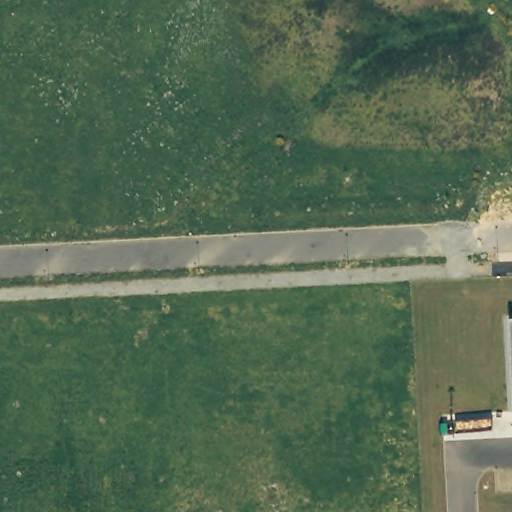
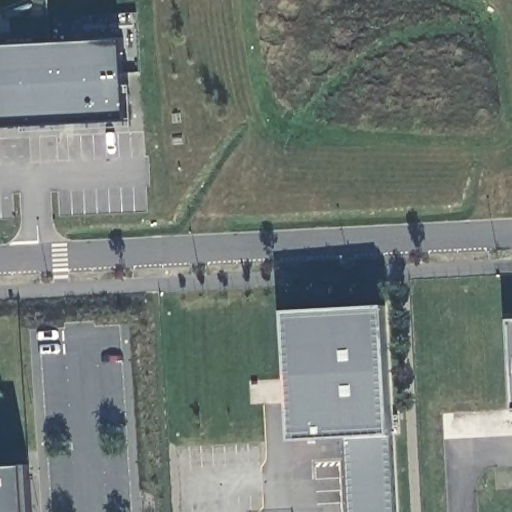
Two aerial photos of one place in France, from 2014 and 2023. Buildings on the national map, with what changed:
new [(127,38),(131,121),(2,128),(0,86),(0,44),(127,38)]
new [(383,308),(391,434),(395,434),(398,512),(349,512),(346,439),(290,442),(285,312),(383,308)]
unchanged [(512,321),(512,390),(508,321),(512,321)]
new [(27,467),(29,512),(0,512),(0,468),(27,467)]

